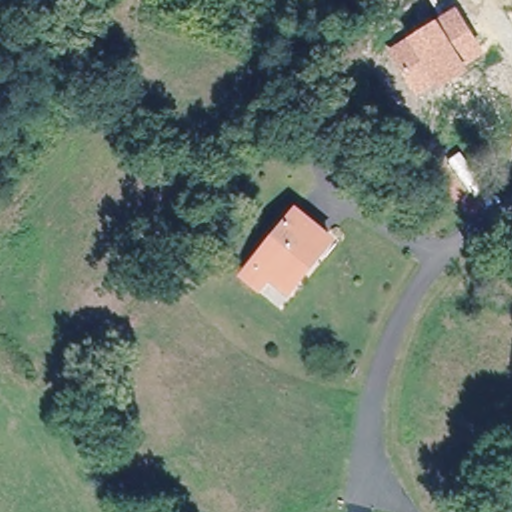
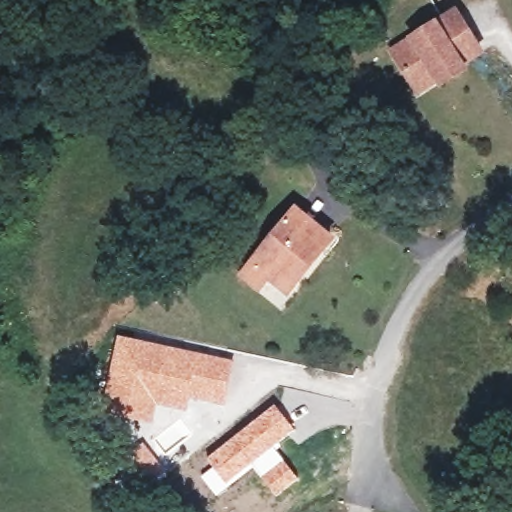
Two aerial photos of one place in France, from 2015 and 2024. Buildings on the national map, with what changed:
unchanged [(458,7),(487,54),(417,97),(388,49),(458,7)]
unchanged [(299,208),(335,238),(321,254),(305,272),(292,288),(270,270),(261,282),(247,270),(256,259),(299,208)]
new [(118,335),(234,361),(224,404),(190,397),(186,410),(158,404),(152,423),(101,409),(118,335)]
new [(276,405),(295,430),(227,486),(207,458),(276,405)]

